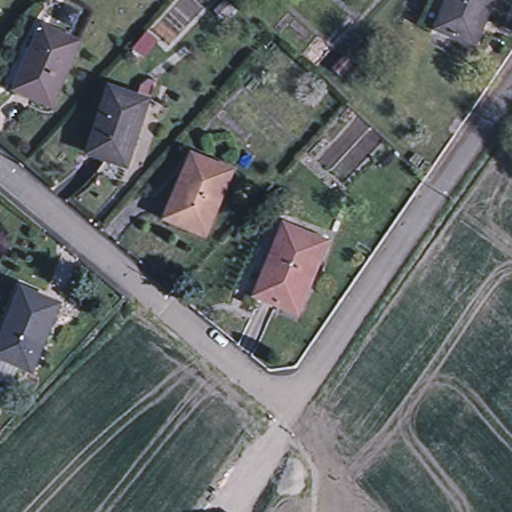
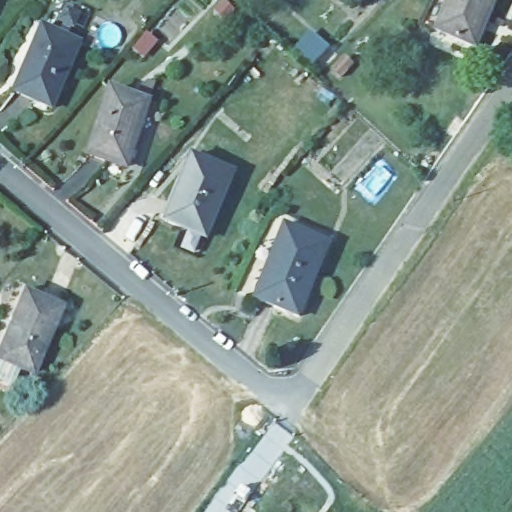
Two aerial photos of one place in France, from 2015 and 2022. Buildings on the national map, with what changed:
unchanged [(441,33),(454,0),(498,0),(478,48),(441,33)]
unchanged [(81,43),(54,106),(18,90),(44,28),(81,43)]
unchanged [(148,101),(125,166),(89,153),(111,88),(148,101)]
unchanged [(234,173),(209,235),(171,220),(196,158),(234,173)]
unchanged [(329,244),(302,315),(260,299),(287,228),(329,244)]
unchanged [(37,368),(0,354),(0,353),(26,289),(63,303),(37,368)]

